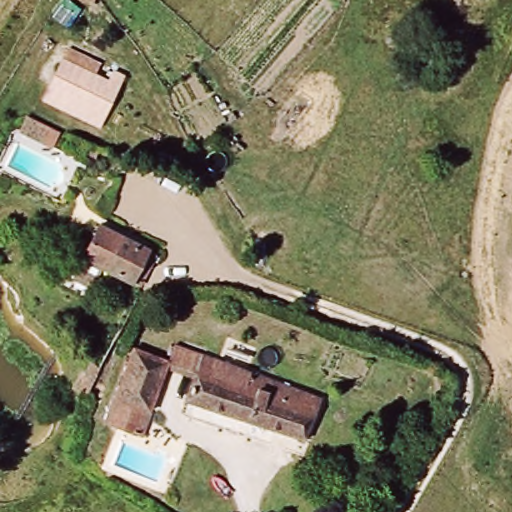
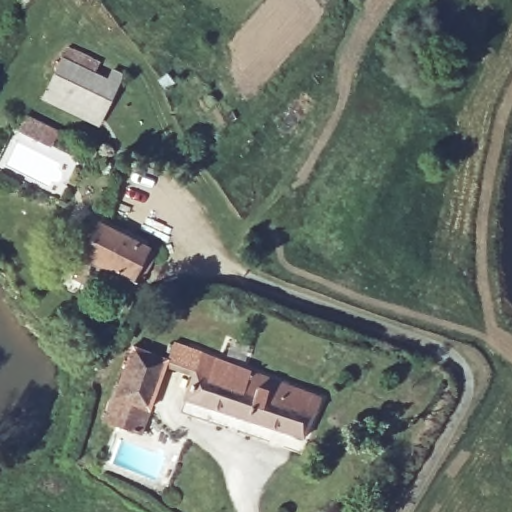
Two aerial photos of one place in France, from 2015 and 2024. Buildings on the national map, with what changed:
unchanged [(49,79),(70,51),(120,89),(97,117),(91,125),(42,86),(49,79)]
unchanged [(17,115),(25,102),(52,120),(44,133),(17,115)]
unchanged [(131,288),(116,279),(84,258),(102,231),(135,251),(148,259),(131,288)]
unchanged [(130,434),(109,425),(140,355),(171,370),(150,416),(140,412),(130,434)]
unchanged [(192,402),(209,359),(325,404),(313,432),(307,447),(192,402)]

